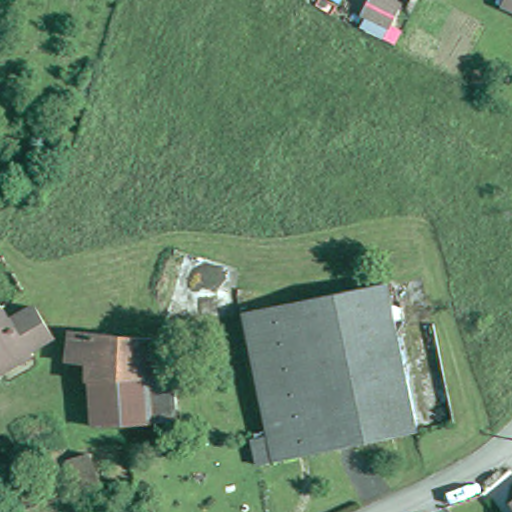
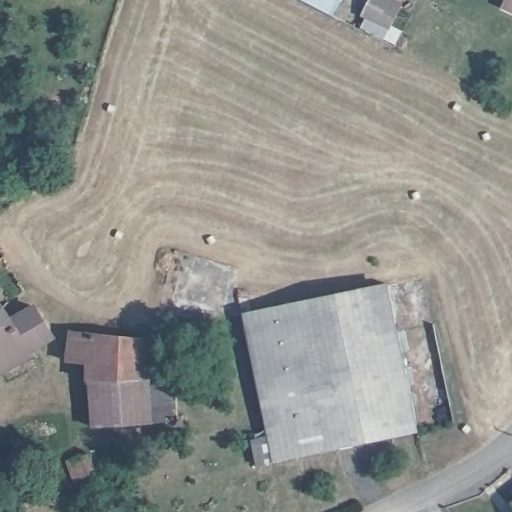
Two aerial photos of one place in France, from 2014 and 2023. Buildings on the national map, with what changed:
unchanged [(498,0),(512,0),(512,7),(498,0)]
unchanged [(379,281),(412,427),(251,465),(246,439),(263,435),(236,313),(379,281)]
unchanged [(7,319),(31,306),(48,335),(25,350),(28,356),(0,372),(0,308),(7,319)]
unchanged [(75,371),(74,353),(55,352),(55,330),(61,322),(148,330),(145,366),(75,371)]
unchanged [(145,366),(160,365),(161,409),(76,416),(75,371),(145,366)]
unchanged [(103,486),(78,494),(77,491),(67,462),(90,455),(101,484),(103,486)]
unchanged [(512,497),(512,500),(511,498),(512,497)]

